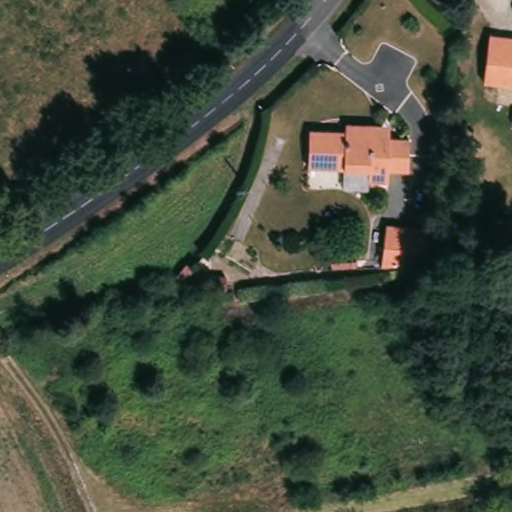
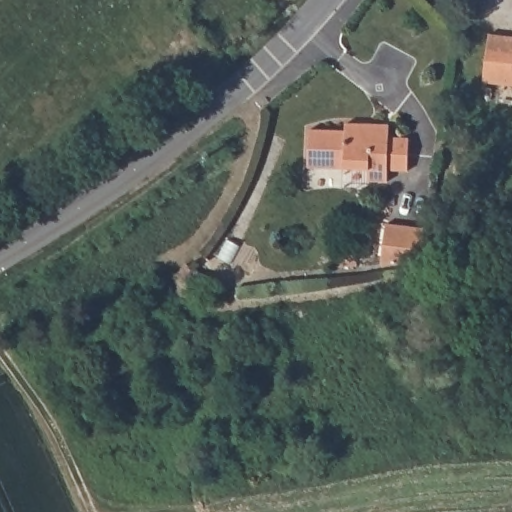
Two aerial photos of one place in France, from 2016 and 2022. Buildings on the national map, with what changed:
unchanged [(483,81),(489,34),(512,37),(512,85),(483,81)]
unchanged [(346,123),(377,124),(388,124),(388,137),(410,138),(408,171),(387,170),(387,182),(368,180),(368,169),(308,167),(310,129),(346,130),(346,123)]
unchanged [(392,224),(430,229),(426,260),(386,269),(392,224)]
unchanged [(210,275),(225,275),(225,289),(210,289),(210,275)]

